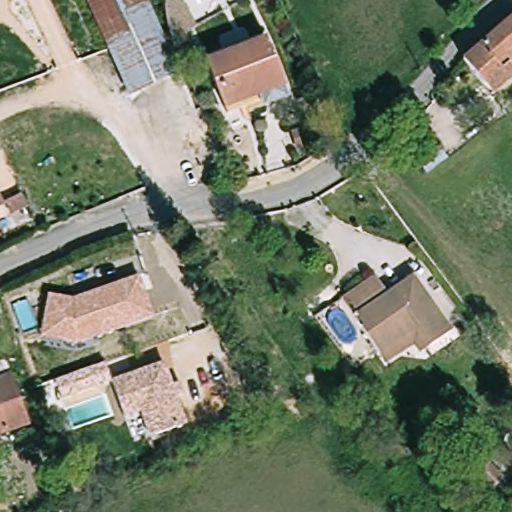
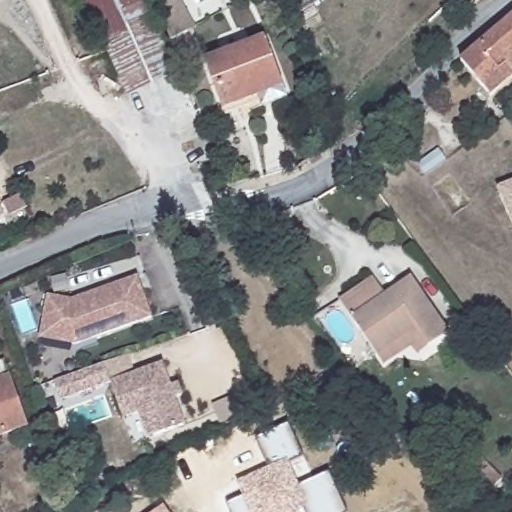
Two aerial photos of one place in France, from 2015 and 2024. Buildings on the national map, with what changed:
unchanged [(84,0),(142,0),(175,76),(129,97),(84,0)]
unchanged [(180,3),(196,31),(186,36),(177,41),(171,45),(166,31),(163,11),(163,0),(178,0),(180,3)]
unchanged [(507,73),(510,77),(487,97),(460,62),(512,18),(512,69),(507,73)]
unchanged [(270,36),(293,97),(266,108),(262,97),(228,109),(209,59),(270,36)]
unchanged [(416,158),(437,142),(446,154),(425,170),(416,158)]
new [(498,188),(512,182),(512,222),(498,188)]
unchanged [(19,193),(25,204),(26,207),(10,214),(3,201),(19,193)]
unchanged [(0,205),(5,215),(0,217),(0,205)]
unchanged [(77,344),(39,338),(47,293),(72,299),(138,275),(154,318),(77,344)]
unchanged [(414,344),(384,364),(377,354),(340,300),(374,276),(387,295),(413,277),(452,333),(430,348),(421,354),(414,344)]
unchanged [(32,425),(0,436),(0,363),(10,360),(32,425)]
unchanged [(162,361),(172,383),(177,380),(183,393),(175,397),(188,428),(152,440),(140,414),(126,418),(110,383),(162,361)]
unchanged [(110,383),(64,401),(57,381),(105,364),(110,383)]
new [(243,497),(238,482),(269,468),(258,439),(290,425),(303,457),(289,462),(299,486),(330,473),(347,512),(305,512),(303,508),(295,512),(230,512),(227,504),(243,497)]
new [(168,512),(155,512),(164,506),(168,512)]

